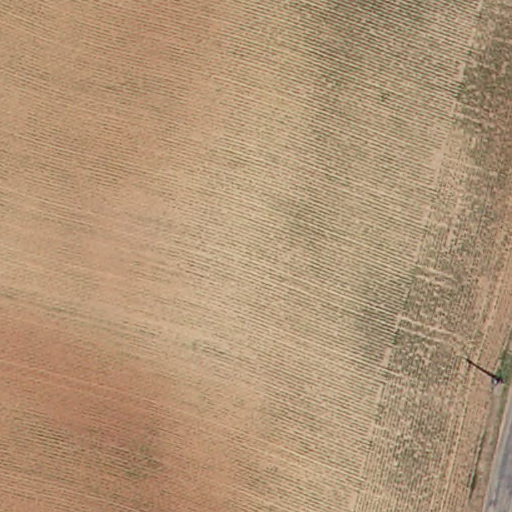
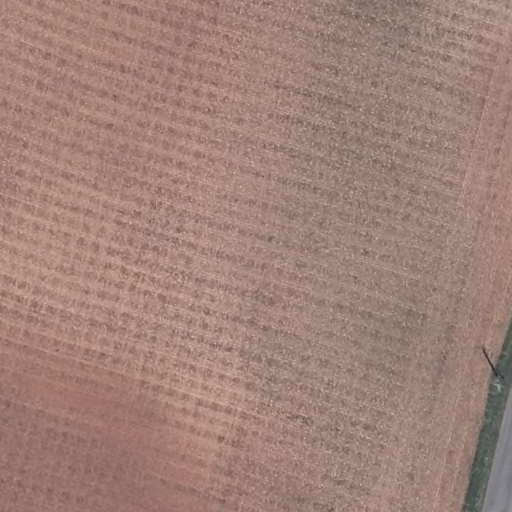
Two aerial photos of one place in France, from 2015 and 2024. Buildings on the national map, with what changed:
[]

